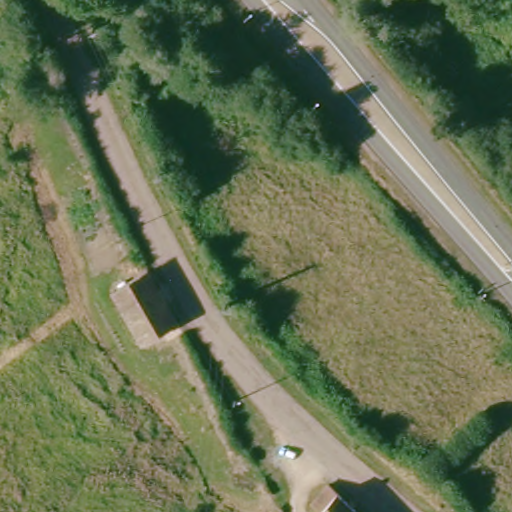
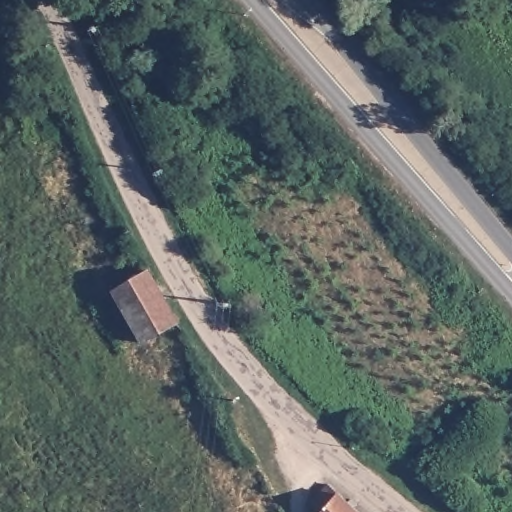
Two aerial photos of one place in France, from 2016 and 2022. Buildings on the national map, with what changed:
unchanged [(145,346),(120,292),(155,275),(183,331),(145,346)]
unchanged [(359,512),(312,512),(308,509),(333,487),(359,512)]

